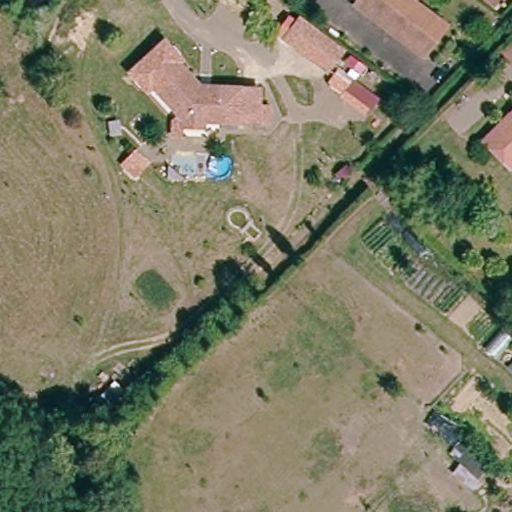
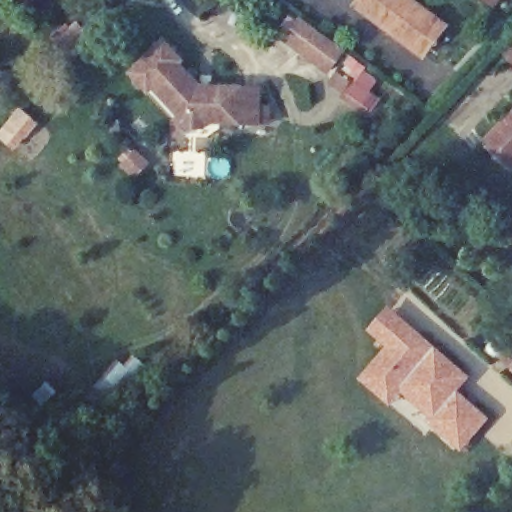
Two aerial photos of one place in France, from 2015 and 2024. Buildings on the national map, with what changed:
unchanged [(356,8),(361,0),(376,0),(366,14),(356,8)]
unchanged [(415,49),(366,14),(376,0),(396,0),(431,24),(415,49)]
unchanged [(427,58),(415,49),(431,24),(396,0),(410,0),(448,26),(427,58)]
unchanged [(491,0),(505,0),(500,7),(491,0)]
unchanged [(334,43),(344,49),(329,70),(287,40),(302,19),(334,43)]
unchanged [(149,81),(175,58),(202,86),(207,81),(238,82),(257,83),(257,101),(267,101),(266,118),(257,118),(238,118),(202,117),(202,123),(190,123),(182,123),(182,116),(149,81)]
unchanged [(510,163),(489,140),(512,116),(512,161),(510,163)]
new [(426,422),(430,417),(401,394),(389,406),(358,379),(386,347),(367,330),(389,305),(471,377),(459,391),(489,419),(461,452),(426,422)]
new [(512,346),(512,371),(509,368),(497,361),(512,346)]

